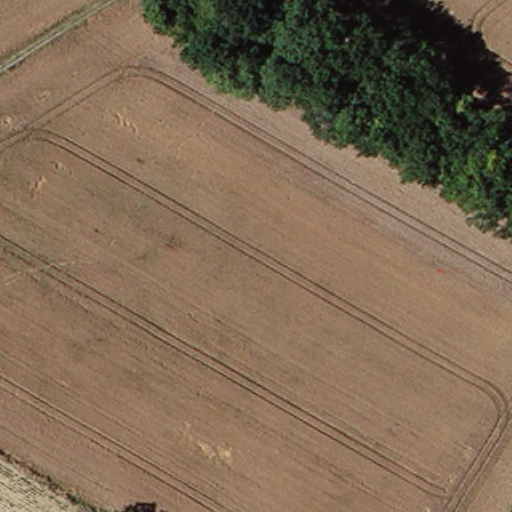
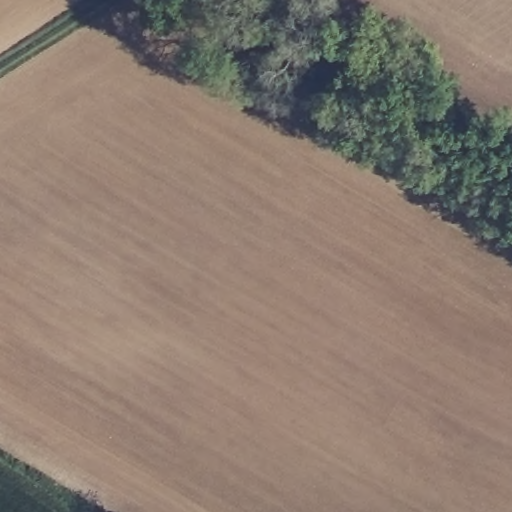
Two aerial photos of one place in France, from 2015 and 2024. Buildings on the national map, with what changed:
[]

